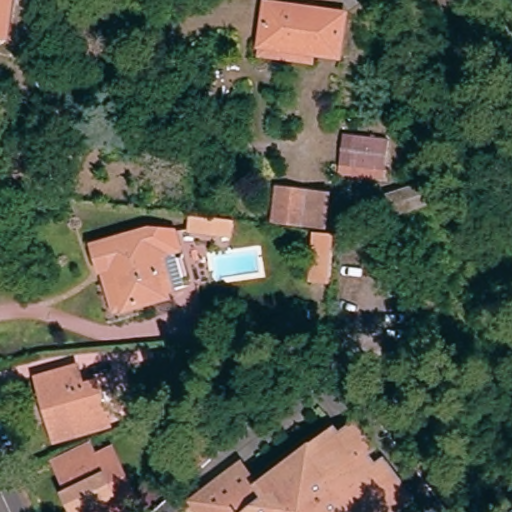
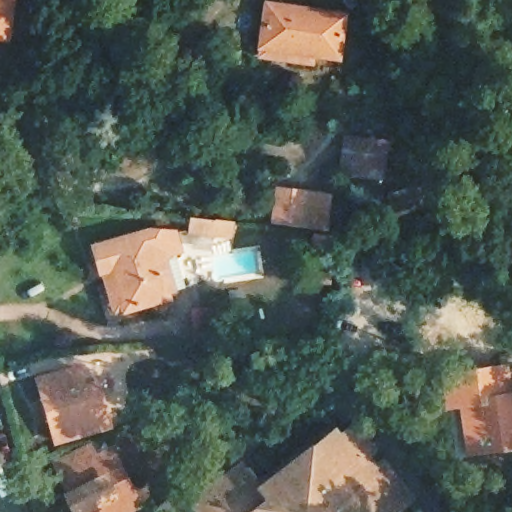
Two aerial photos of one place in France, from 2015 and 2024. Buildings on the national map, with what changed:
unchanged [(0,36),(0,0),(12,0),(7,37),(0,36)]
unchanged [(343,15),(337,60),(312,56),(312,61),(257,54),(263,5),(343,15)]
unchanged [(386,141),(385,176),(345,173),(348,139),(386,141)]
unchanged [(433,177),(444,207),(390,228),(382,200),(433,177)]
unchanged [(326,197),(321,239),(255,229),(264,193),(326,197)]
unchanged [(231,251),(194,245),(196,228),(234,234),(231,251)]
unchanged [(129,317),(116,274),(106,277),(100,256),(151,241),(177,241),(182,257),(170,260),(175,279),(164,283),(170,304),(129,317)]
unchanged [(319,242),(335,244),(330,290),(315,289),(319,242)]
new [(510,361),(512,376),(512,389),(477,394),(472,366),(510,361)]
new [(472,366),(477,394),(512,389),(512,451),(464,457),(456,407),(439,410),(433,370),(472,366)]
unchanged [(52,451),(47,435),(52,434),(45,410),(40,412),(35,390),(70,379),(75,399),(89,395),(101,436),(52,451)]
unchanged [(187,509),(236,472),(255,494),(331,434),(335,438),(347,428),(369,455),(361,461),(370,472),(377,467),(406,504),(397,512),(189,512),(187,509)]
unchanged [(191,477),(180,464),(207,439),(219,452),(191,477)]
unchanged [(64,503),(67,501),(51,469),(84,454),(90,468),(106,461),(131,510),(127,512),(68,512),(64,503)]

